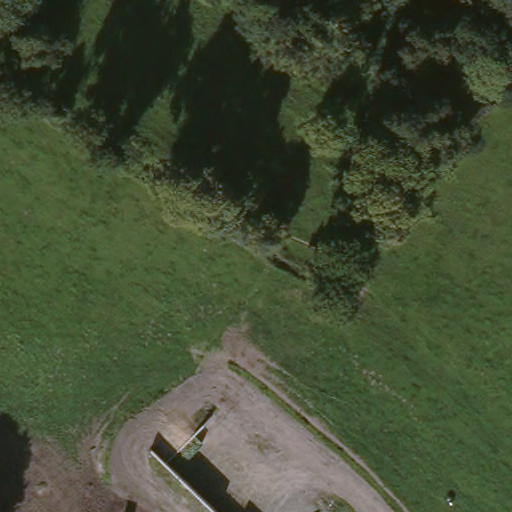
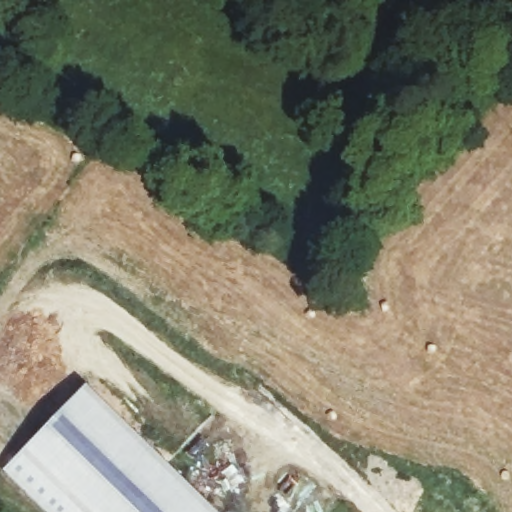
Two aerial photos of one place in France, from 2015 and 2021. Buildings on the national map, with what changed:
new [(2,471),(86,386),(215,512),(44,512),(2,471)]

